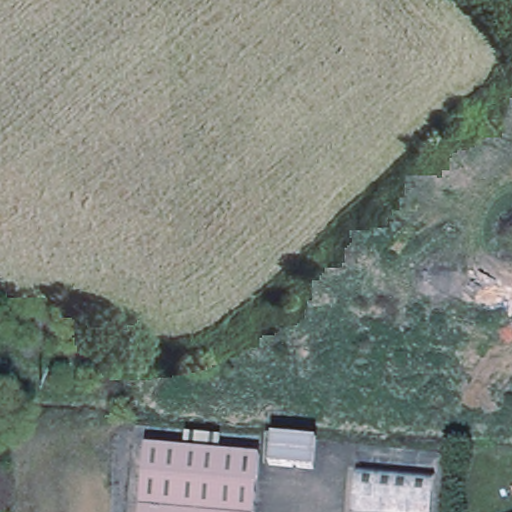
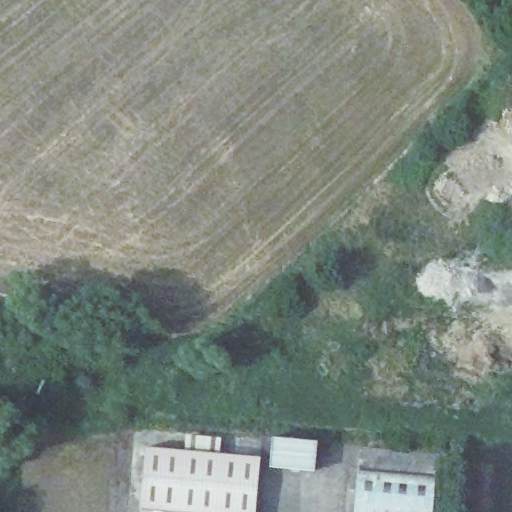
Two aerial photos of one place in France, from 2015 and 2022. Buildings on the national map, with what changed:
unchanged [(315,444),(312,472),(270,468),(272,439),(315,444)]
unchanged [(147,446),(259,457),(255,512),(156,512),(141,511),(147,446)]
unchanged [(434,474),(431,512),(354,512),(357,469),(434,474)]
unchanged [(156,512),(141,512),(141,511),(156,512)]

